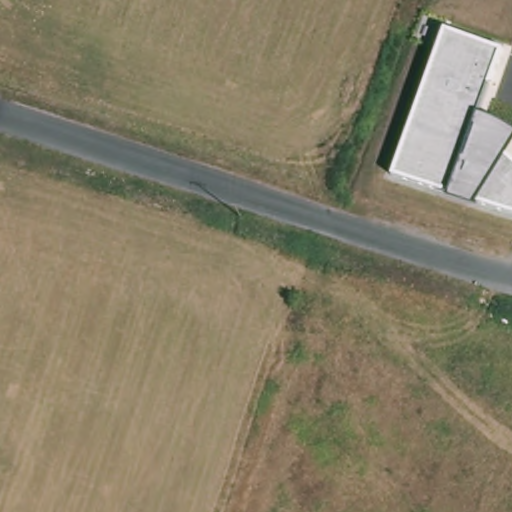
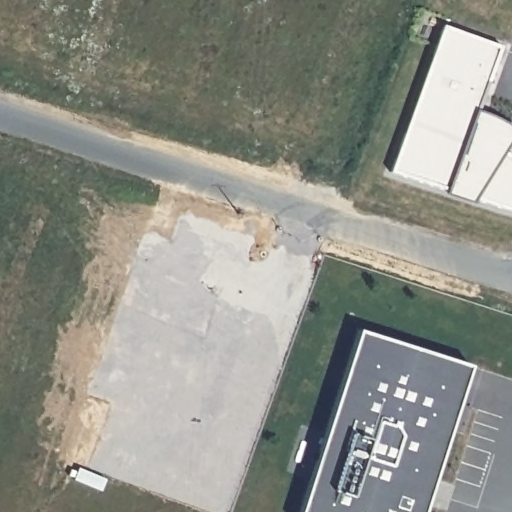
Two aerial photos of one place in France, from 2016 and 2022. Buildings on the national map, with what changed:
unchanged [(493,207),(471,199),(470,201),(447,194),(448,190),(390,173),(441,26),(501,47),(477,112),(496,120),(512,130),(512,134),(503,150),(512,158),(512,210),(509,210),(493,207)]
new [(306,512),(364,332),(477,368),(441,482),(433,507),(431,512),(306,512)]

